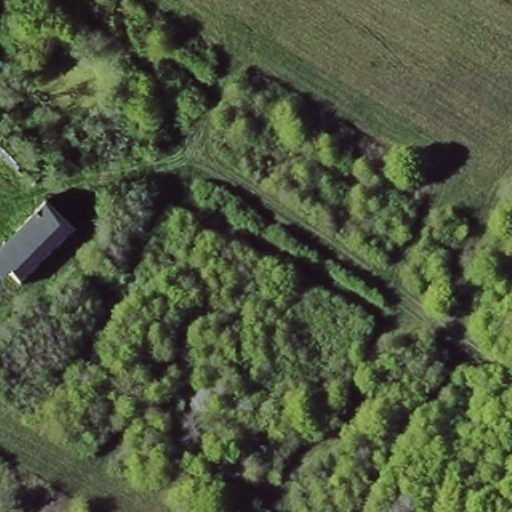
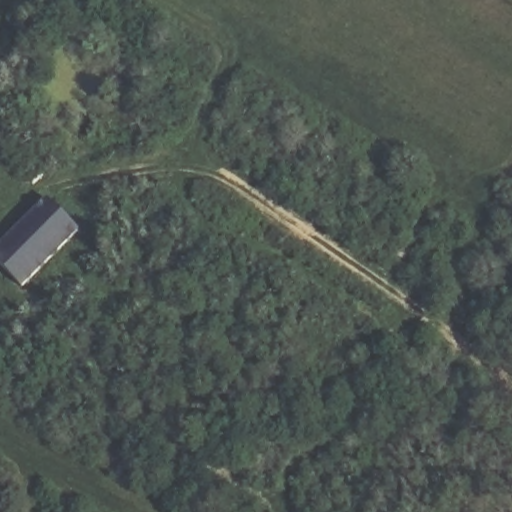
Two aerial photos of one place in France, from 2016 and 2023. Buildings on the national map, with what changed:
unchanged [(28,182),(0,155),(0,127),(1,126),(43,167),(28,182)]
unchanged [(18,285),(0,267),(0,244),(45,199),(74,227),(18,285)]

